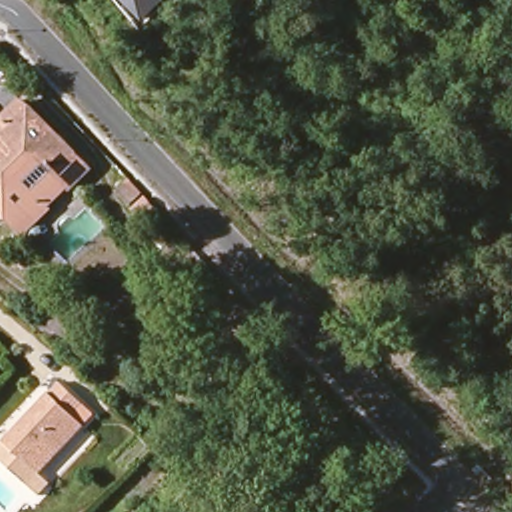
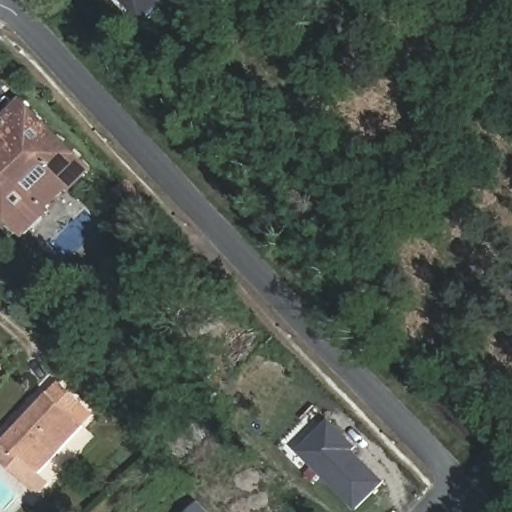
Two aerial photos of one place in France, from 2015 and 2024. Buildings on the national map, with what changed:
unchanged [(122,0),(167,0),(144,22),(122,0)]
unchanged [(87,169),(68,188),(55,174),(25,204),(6,186),(0,193),(0,120),(18,102),(87,169)]
unchanged [(50,208),(54,210),(25,239),(0,215),(0,193),(6,186),(25,204),(55,174),(68,188),(50,208)]
unchanged [(82,404),(72,414),(83,426),(36,472),(2,439),(59,382),(82,404)]
new [(358,511),(299,450),(331,418),(360,447),(357,451),(387,482),(358,511)]
unchanged [(36,472),(50,484),(38,496),(0,460),(0,442),(2,439),(36,472)]
new [(200,500),(212,512),(189,512),(200,500)]

